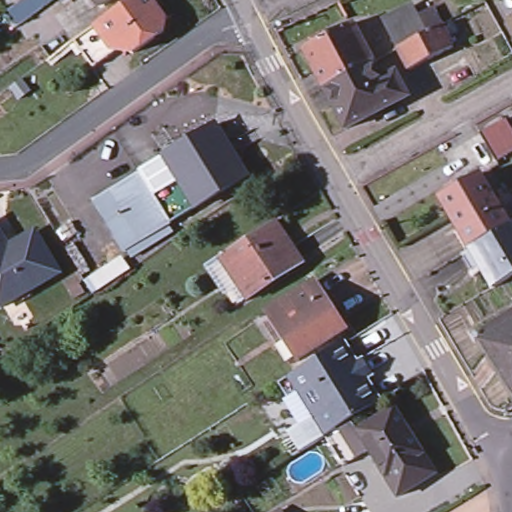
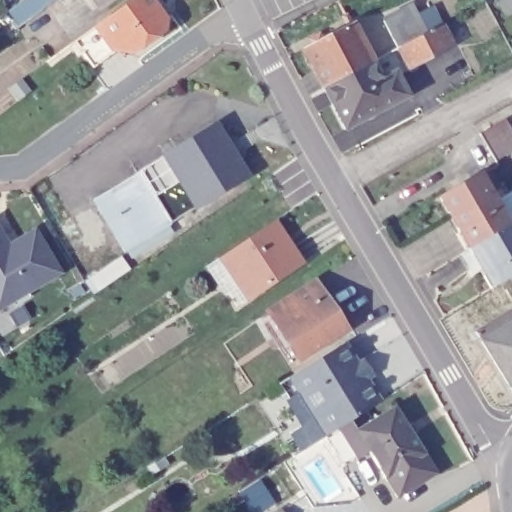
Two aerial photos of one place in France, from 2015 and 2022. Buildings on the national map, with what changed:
unchanged [(93,61),(73,35),(122,0),(153,0),(163,13),(162,25),(132,46),(123,45),(120,44),(118,43),(93,61)]
unchanged [(387,14),(413,1),(419,12),(424,22),(423,26),(425,24),(427,28),(443,19),(454,40),(416,59),(411,62),(409,58),(401,41),(399,38),(387,14)]
unchanged [(321,84),(308,58),(301,47),(352,22),(358,32),(371,57),(374,61),(382,75),(396,69),(404,86),(408,93),(402,96),(344,126),(323,86),(321,84)]
unchanged [(60,43),(70,35),(79,48),(69,56),(60,43)]
unchanged [(18,77),(28,89),(16,97),(7,85),(18,77)]
unchanged [(474,130),(500,115),(512,136),(512,145),(490,157),(474,130)]
unchanged [(216,128),(226,144),(243,171),(191,203),(176,178),(165,159),(216,128)]
unchanged [(173,229),(126,255),(108,226),(105,221),(112,217),(101,199),(140,175),(165,159),(176,178),(191,203),(173,229)]
unchanged [(509,224),(469,247),(441,199),(439,196),(480,174),(482,176),(509,224)]
unchanged [(272,219),(299,260),(246,297),(218,255),(272,219)]
unchanged [(484,260),(471,267),(462,252),(469,247),(509,224),(512,223),(512,275),(497,283),(496,282),(484,260)]
unchanged [(29,228),(48,259),(54,270),(21,289),(0,302),(0,239),(3,244),(29,228)]
unchanged [(313,281),(342,327),(298,355),(269,309),(313,281)]
unchanged [(512,320),(512,391),(505,396),(473,344),(512,320)]
unchanged [(300,406),(292,393),(299,388),(299,387),(291,374),(346,340),(354,352),(357,357),(350,362),(356,371),(374,401),(326,431),(319,436),(306,415),(300,406)]
unchanged [(380,471),(354,430),(392,407),(417,448),(421,454),(433,473),(395,496),(384,477),(380,471)]
unchanged [(279,507),(282,512),(271,512),(279,507)]

